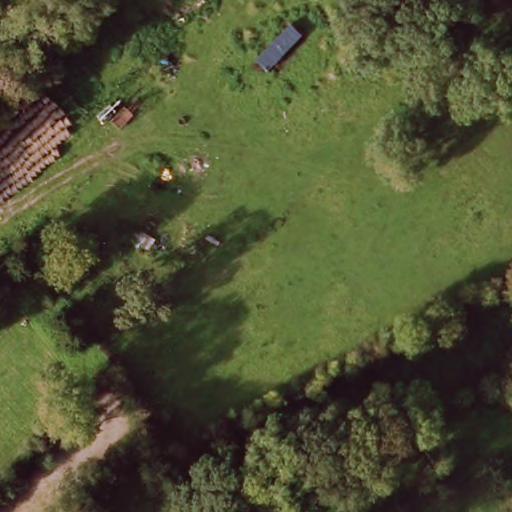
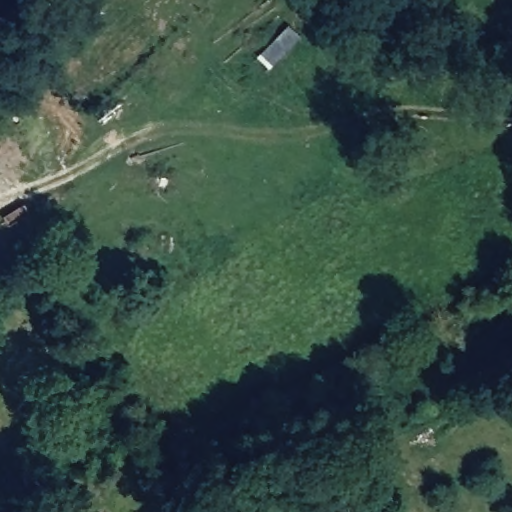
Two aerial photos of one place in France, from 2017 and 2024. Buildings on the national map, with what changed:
[]

